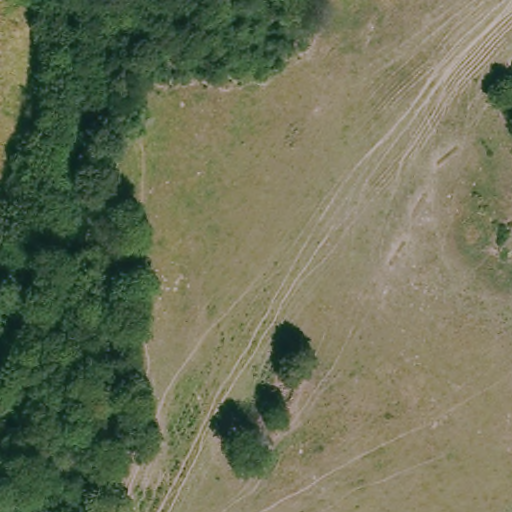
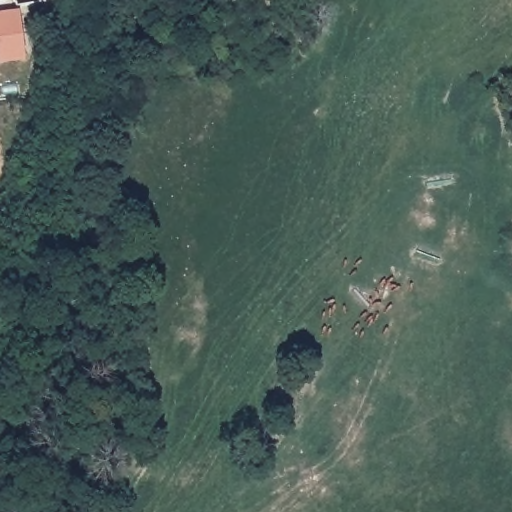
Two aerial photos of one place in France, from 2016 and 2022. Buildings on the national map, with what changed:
new [(19,10),(25,58),(0,61),(0,12),(19,10)]

